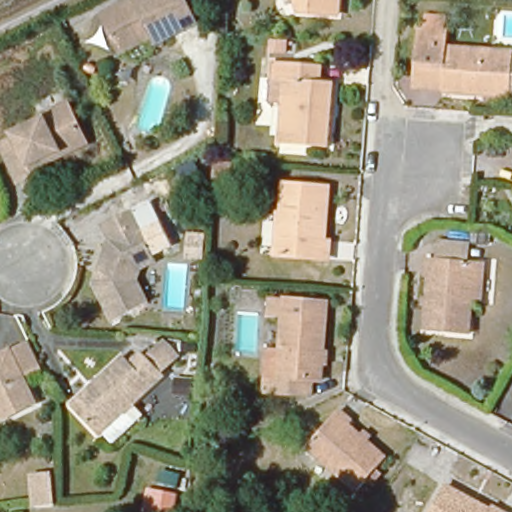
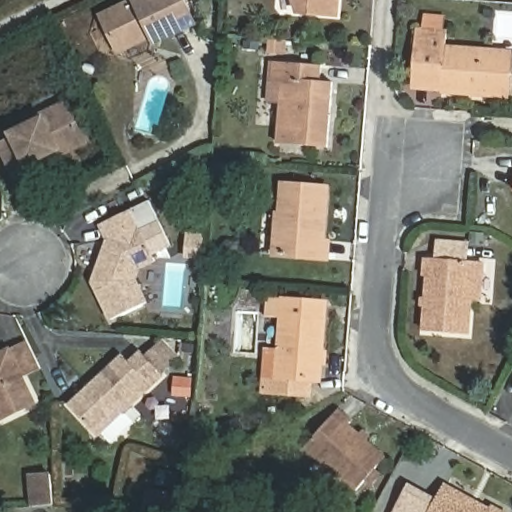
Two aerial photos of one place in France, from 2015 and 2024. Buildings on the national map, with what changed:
unchanged [(184,0),(196,23),(156,43),(153,36),(119,53),(101,17),(136,0),(184,0)]
unchanged [(298,27),(291,4),(291,0),(339,0),(337,30),(298,27)]
unchanged [(511,93),(511,96),(443,91),(444,84),(413,81),(417,31),(423,32),(424,17),(444,19),(443,33),(448,33),(447,49),(512,54),(512,94),(511,93)]
unchanged [(323,66),(322,83),(335,84),(329,148),(277,144),(282,80),(268,79),(270,62),(323,66)]
unchanged [(18,182),(1,146),(14,139),(11,134),(36,123),(34,119),(66,104),(81,134),(56,146),(59,151),(28,166),(33,175),(18,182)]
unchanged [(283,185),(327,188),(323,241),(328,242),(327,259),(275,255),(277,218),(280,218),(283,185)]
unchanged [(135,209),(140,219),(138,224),(156,261),(140,269),(136,280),(146,303),(111,320),(93,283),(108,240),(101,225),(135,209)]
unchanged [(187,243),(203,244),(202,261),(185,260),(187,243)]
unchanged [(436,263),(469,266),(484,267),(481,306),(471,305),(468,339),(425,336),(429,282),(422,281),(424,262),(436,263)]
unchanged [(280,351),(282,317),(267,316),(268,298),(284,299),(326,302),(320,381),(310,380),(308,397),(264,394),(265,377),(267,350),(280,351)]
unchanged [(25,342),(36,364),(20,372),(36,404),(1,420),(0,419),(0,354),(9,350),(25,342)]
unchanged [(70,411),(123,361),(130,368),(141,357),(146,362),(165,345),(182,363),(163,380),(98,441),(70,411)]
unchanged [(306,447),(338,411),(351,422),(348,426),(385,458),(376,468),(370,476),(356,491),(306,447)]
unchanged [(32,473),(52,473),(53,503),(33,503),(32,473)]
new [(411,486),(438,500),(431,512),(395,512),(411,486)]
unchanged [(438,500),(445,486),(491,511),(493,508),(500,512),(431,512),(438,500)]
unchanged [(146,494),(172,499),(170,512),(143,512),(146,494)]

